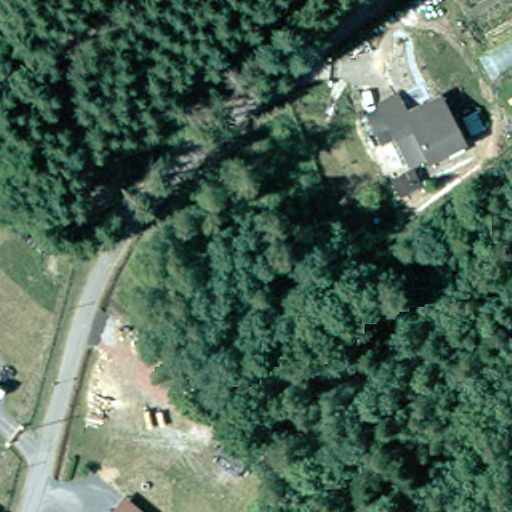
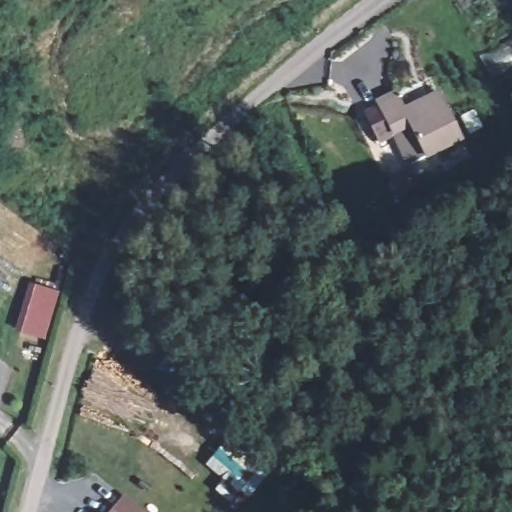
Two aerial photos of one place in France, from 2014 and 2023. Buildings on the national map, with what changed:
unchanged [(407,134),(402,136),(389,142),(375,116),(388,110),(409,99),(415,112),(446,98),(468,143),(432,160),(421,165),(407,134)]
new [(61,289),(46,338),(17,330),(30,282),(61,289)]

